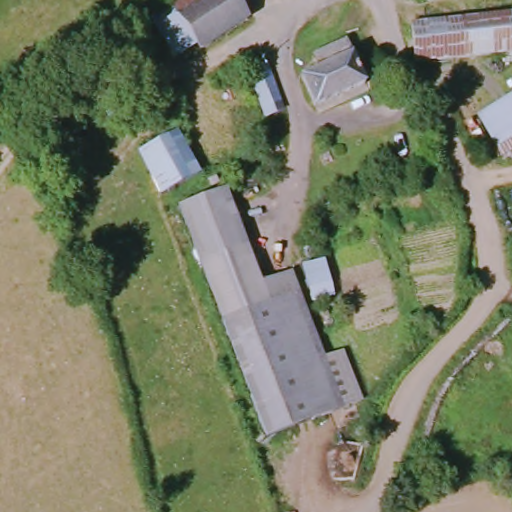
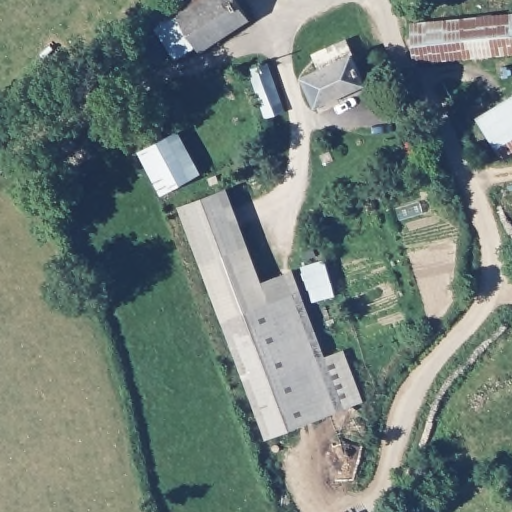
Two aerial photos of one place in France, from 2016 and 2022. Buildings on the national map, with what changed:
unchanged [(233,0),(250,27),(203,57),(197,51),(180,59),(163,34),(183,21),(218,0),(233,0)]
unchanged [(218,0),(183,21),(175,5),(182,0),(218,0)]
unchanged [(415,23),(428,20),(512,12),(512,56),(435,63),(417,65),(415,23)]
unchanged [(357,48),(363,61),(371,57),(381,76),(373,80),(375,82),(317,110),(303,79),(330,69),(322,52),(345,41),(352,51),(357,48)]
unchanged [(270,66),(284,110),(270,114),(268,107),(257,72),(270,66)]
unchanged [(484,117),(512,101),(512,159),(507,162),(484,117)]
unchanged [(186,135),(208,182),(167,201),(145,152),(186,135)]
unchanged [(232,192),(275,302),(305,292),(345,413),(273,444),(183,206),(232,192)]
unchanged [(340,292),(315,300),(305,263),(329,254),(340,292)]

